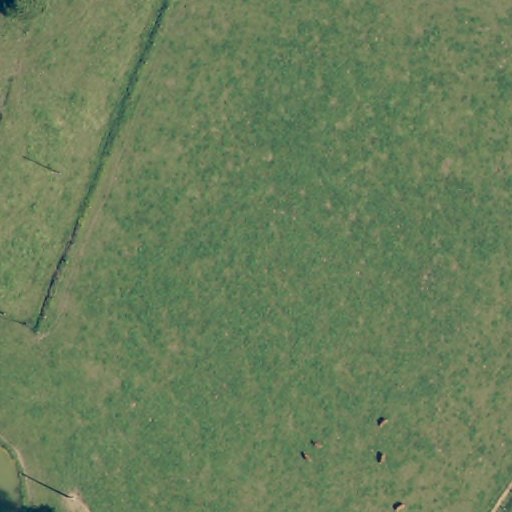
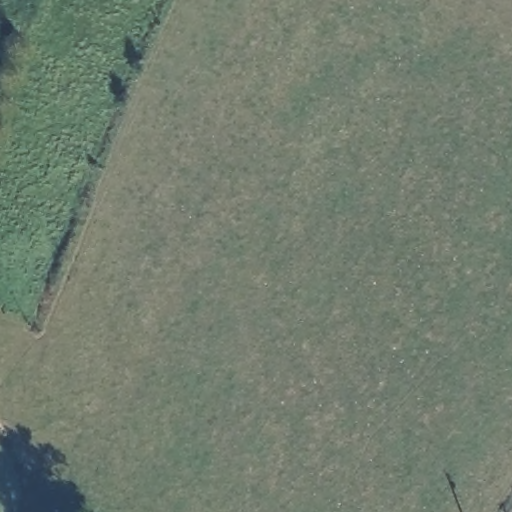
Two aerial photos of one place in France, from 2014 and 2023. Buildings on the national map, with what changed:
[]

